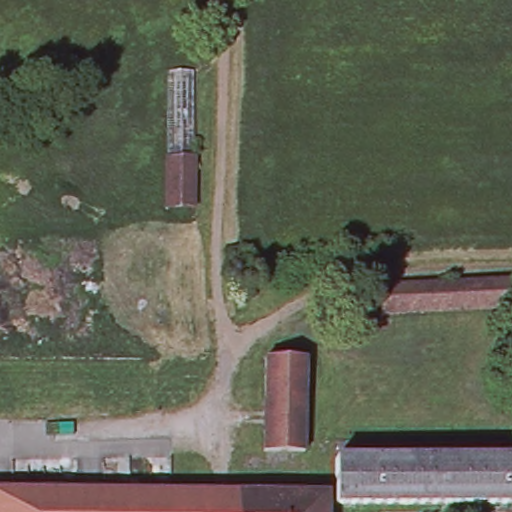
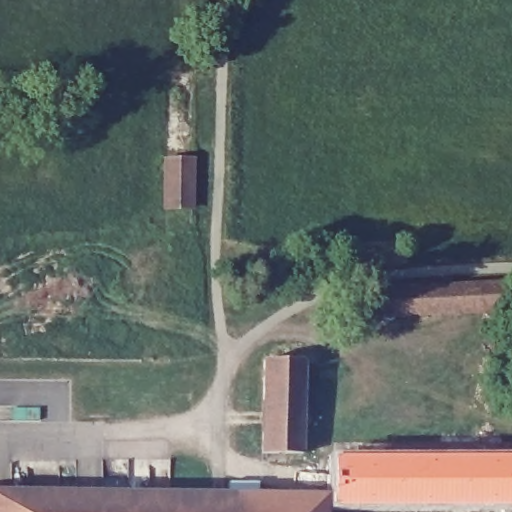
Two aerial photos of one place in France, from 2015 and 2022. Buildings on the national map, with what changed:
unchanged [(166,69),(197,68),(195,207),(165,206),(166,69)]
unchanged [(512,310),(380,317),(378,289),(512,280),(512,310)]
unchanged [(303,360),(303,452),(261,452),(262,359),(303,360)]
unchanged [(333,460),(512,461),(512,506),(332,504),(333,460)]
unchanged [(198,493),(198,512),(0,512),(0,491),(198,493)]
unchanged [(225,512),(198,512),(198,493),(226,494),(225,512)]
unchanged [(324,512),(225,512),(226,494),(324,495),(324,512)]

